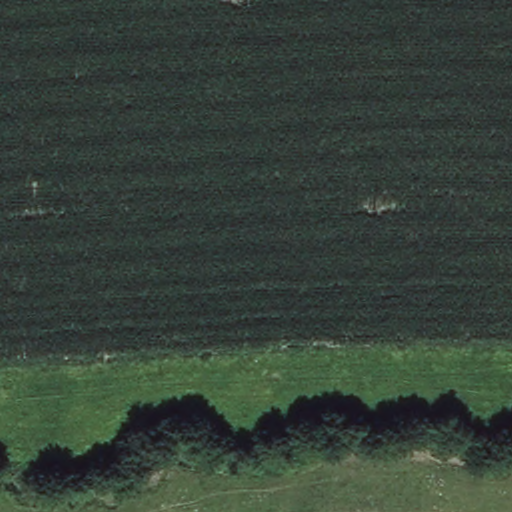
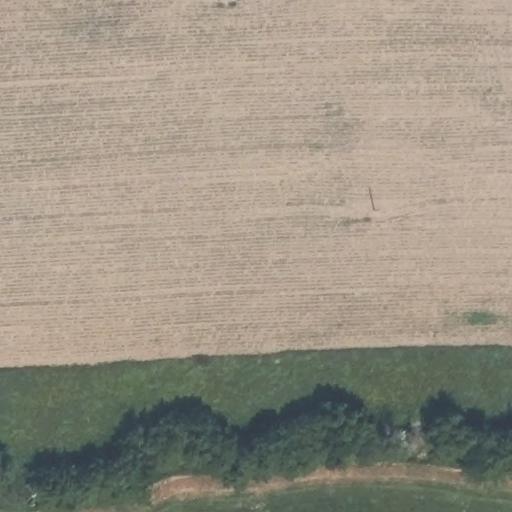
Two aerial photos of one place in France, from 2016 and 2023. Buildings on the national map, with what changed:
[]

